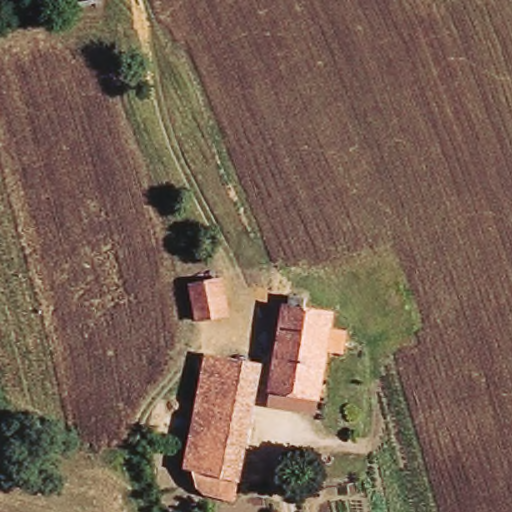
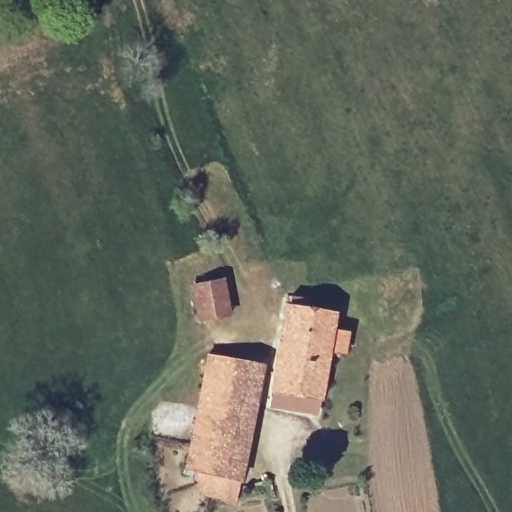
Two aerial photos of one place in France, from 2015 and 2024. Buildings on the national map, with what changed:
unchanged [(218,280),(222,317),(193,321),(190,283),(218,280)]
unchanged [(335,314),(332,337),(350,340),(346,359),(328,355),(318,405),(265,396),(282,304),(335,314)]
unchanged [(182,469),(207,357),(262,368),(257,388),(232,482),(227,499),(207,493),(188,486),(192,473),(182,469)]

